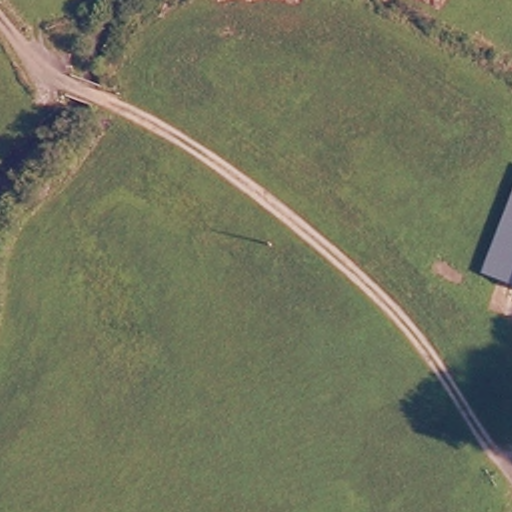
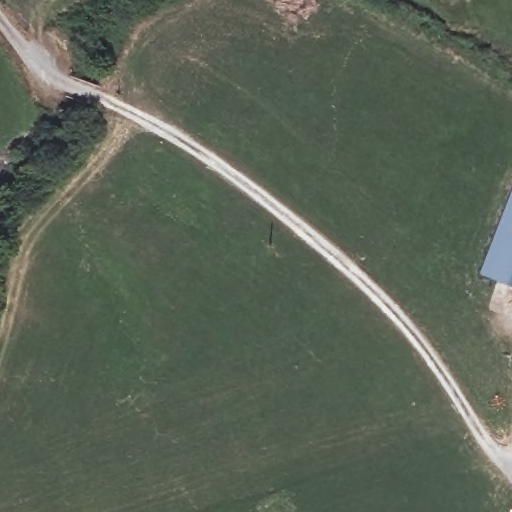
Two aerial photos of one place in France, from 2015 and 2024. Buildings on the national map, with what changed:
unchanged [(512,201),(512,280),(484,268),(512,201)]

